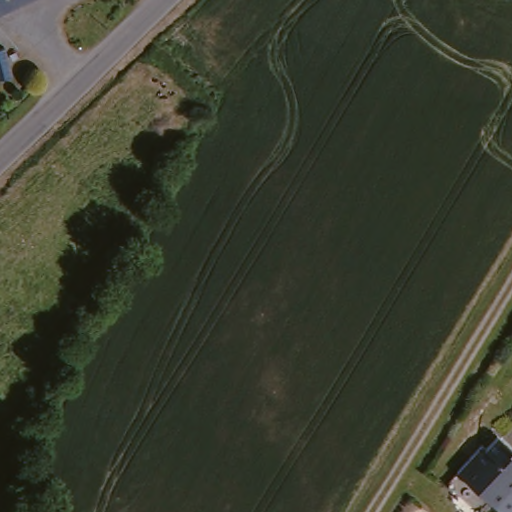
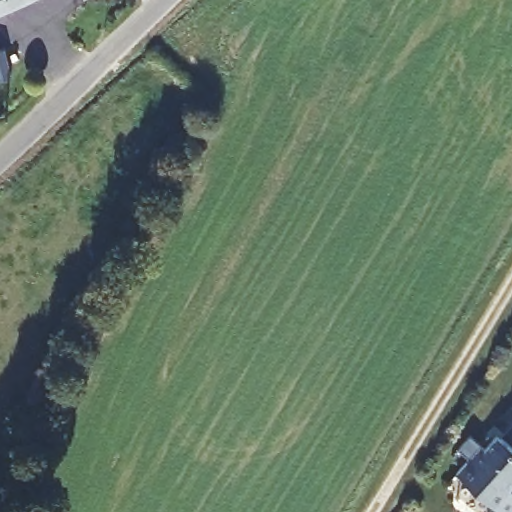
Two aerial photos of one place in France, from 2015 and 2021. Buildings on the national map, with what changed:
unchanged [(0,0),(28,0),(0,13),(0,0)]
unchanged [(481,442),(485,446),(497,432),(512,445),(512,509),(509,512),(506,512),(458,469),(481,442)]

